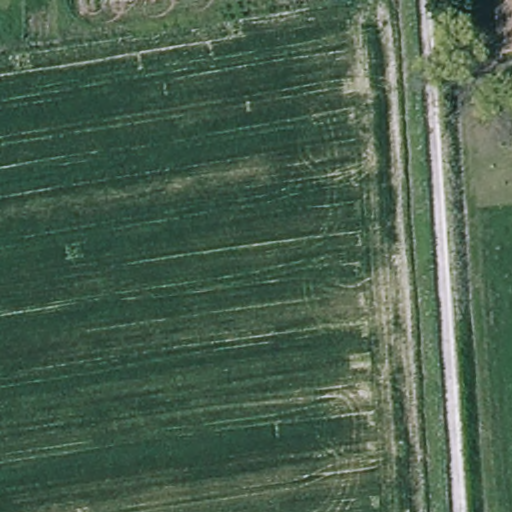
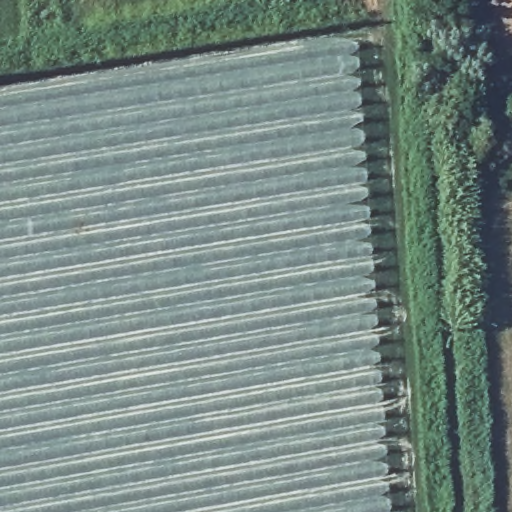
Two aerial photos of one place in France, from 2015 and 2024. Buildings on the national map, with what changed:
unchanged [(493,0),(512,0),(512,57),(501,58),(493,0)]

